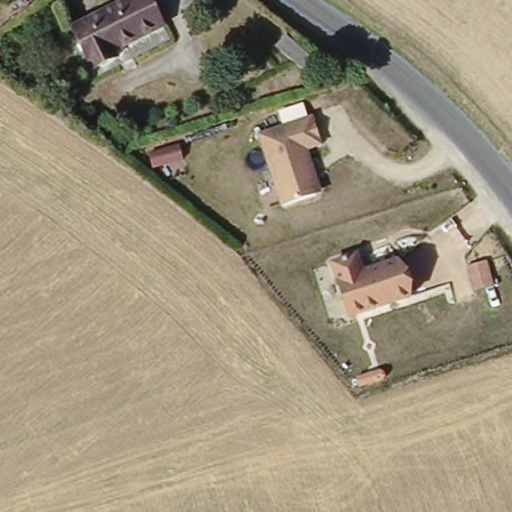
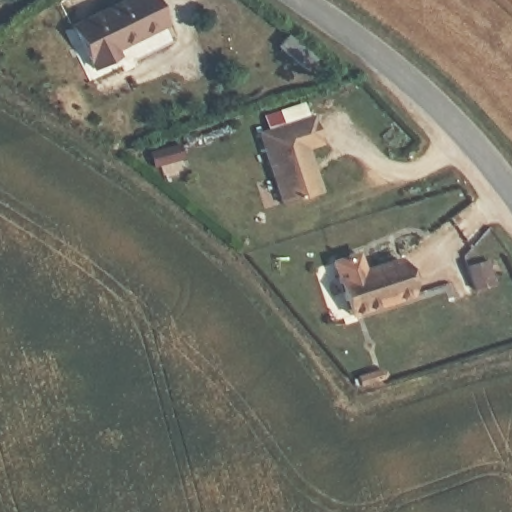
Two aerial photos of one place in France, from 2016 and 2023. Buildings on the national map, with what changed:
unchanged [(142,0),(152,0),(168,32),(111,55),(115,63),(92,76),(72,31),(142,0)]
unchanged [(326,58),(319,68),(293,49),(301,39),(326,58)]
unchanged [(326,142),(312,147),(325,192),(281,205),(257,132),(318,115),(326,142)]
unchanged [(358,254),(365,272),(404,260),(413,293),(354,313),(335,261),(358,254)]

